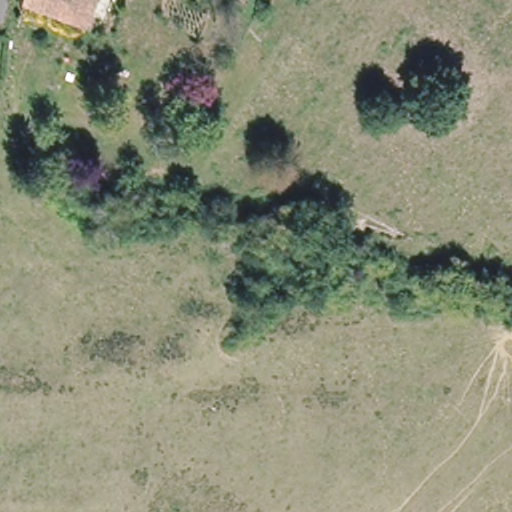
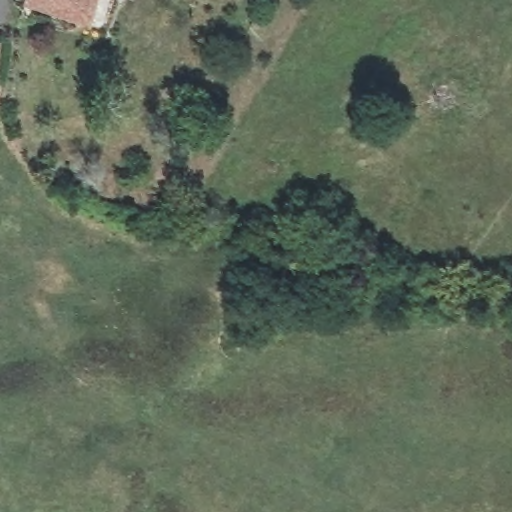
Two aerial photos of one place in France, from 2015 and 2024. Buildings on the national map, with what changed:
unchanged [(92,14),(37,0),(102,0),(92,14)]

